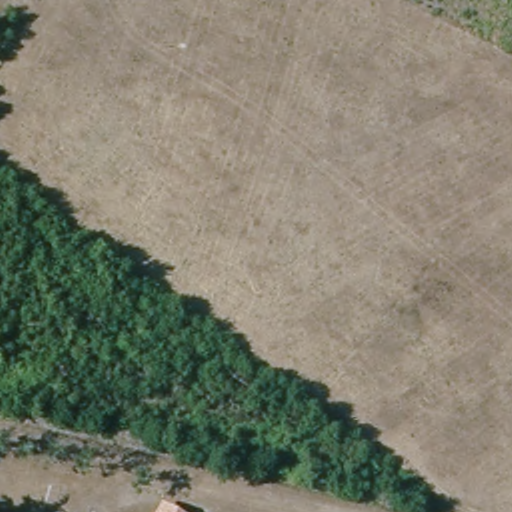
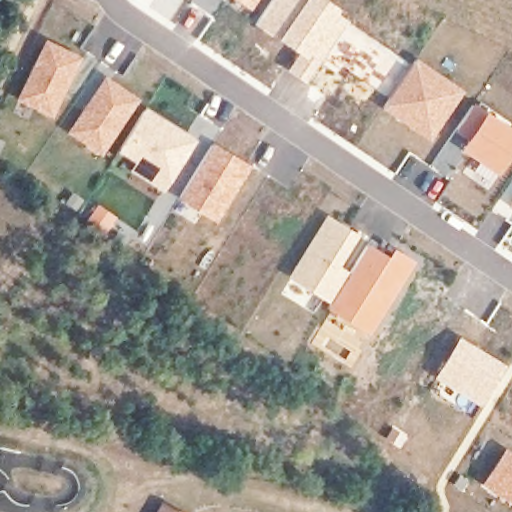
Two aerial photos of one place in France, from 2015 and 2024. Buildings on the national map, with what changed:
new [(235,0),(257,0),(250,10),(235,0)]
new [(327,0),(341,10),(339,14),(349,22),(305,84),(284,71),(296,53),(254,24),(270,0),(327,0)]
new [(45,38),(84,55),(52,119),(14,100),(45,38)]
new [(405,67),(415,56),(465,89),(430,141),(380,108),(405,67)]
new [(105,75),(140,98),(101,156),(65,133),(105,75)]
new [(487,108),(512,126),(512,153),(487,189),(462,171),(466,166),(471,169),(476,161),(467,155),(448,180),(428,166),(447,139),(475,99),(487,108)]
new [(146,106),(186,131),(199,114),(221,128),(212,141),(201,134),(164,193),(130,170),(134,163),(116,152),(146,106)]
new [(212,141),(252,166),(215,222),(176,198),(212,141)]
new [(506,203),(512,195),(512,225),(505,221),(493,239),(498,242),(495,246),(492,244),(490,247),(473,236),(500,198),(506,203)]
new [(98,203),(117,217),(105,235),(85,220),(98,203)]
new [(326,213),(368,241),(326,303),(287,276),(326,213)]
new [(326,303),(368,241),(387,255),(394,246),(418,261),(370,336),(325,306),(326,303)]
new [(459,335),(506,365),(481,406),(432,377),(459,335)]
new [(512,452),(512,505),(480,483),(505,447),(512,452)]
unchanged [(161,510),(164,505),(177,512),(160,512),(161,510)]

